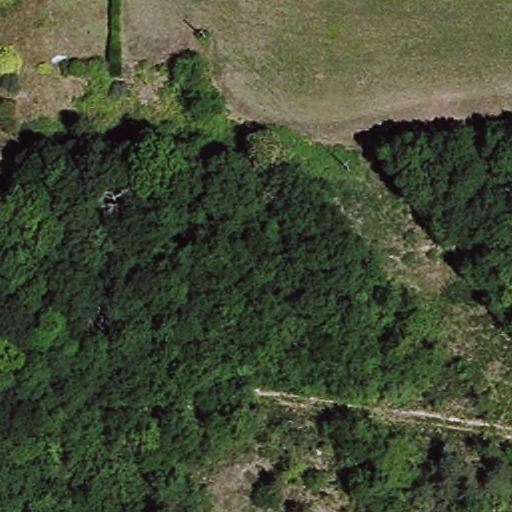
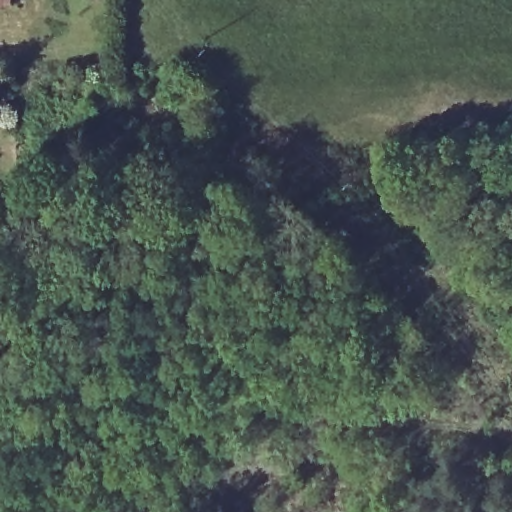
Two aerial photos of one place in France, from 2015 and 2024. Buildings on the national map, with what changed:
unchanged [(0,2),(0,0),(11,0),(12,1),(0,2)]
unchanged [(467,205),(463,189),(480,185),(483,202),(467,205)]

